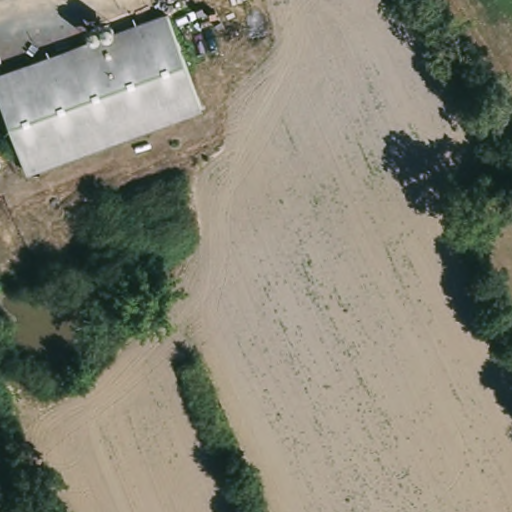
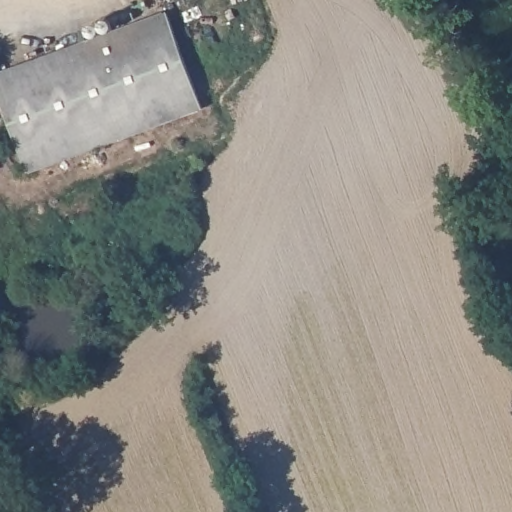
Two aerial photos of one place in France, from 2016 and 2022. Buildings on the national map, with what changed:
unchanged [(90,37),(114,28),(116,33),(167,15),(202,110),(32,175),(0,86),(0,76),(92,42),(90,37)]

